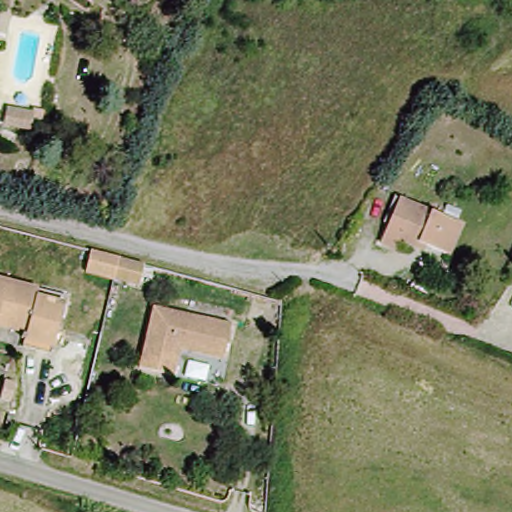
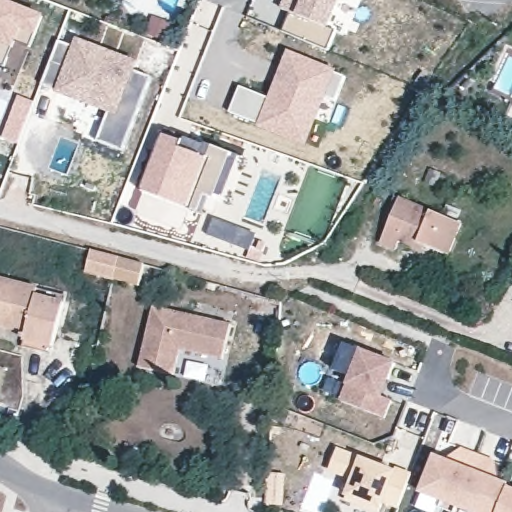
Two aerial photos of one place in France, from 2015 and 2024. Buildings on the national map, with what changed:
new [(0,0),(4,0),(47,17),(39,37),(36,35),(30,48),(17,41),(14,49),(6,67),(0,65),(0,0)]
new [(281,0),(339,0),(329,28),(336,32),(327,50),(282,31),(290,14),(278,7),(281,0)]
new [(59,41),(74,47),(77,39),(139,63),(136,72),(153,79),(124,152),(98,143),(109,113),(56,94),(57,92),(43,86),(59,41)]
new [(268,97),(287,50),(337,70),(336,74),(345,77),(336,100),(327,96),(306,146),(256,126),(228,112),(239,85),(268,97)]
demolished [(29,106),(39,111),(34,121),(25,120),(27,113),(29,106)]
new [(162,132),(184,141),(185,138),(234,154),(216,199),(205,196),(198,213),(139,191),(162,132)]
unchanged [(460,222),(445,252),(421,243),(418,249),(398,242),(394,249),(377,241),(398,197),(460,222)]
new [(213,217),(255,233),(253,239),(249,249),(206,233),(213,217)]
unchanged [(108,277),(85,271),(90,247),(103,251),(114,253),(146,262),(138,285),(108,277)]
unchanged [(37,297),(59,302),(49,348),(25,344),(25,336),(0,332),(0,278),(39,286),(37,297)]
unchanged [(236,329),(227,362),(183,352),(176,378),(141,368),(158,310),(236,329)]
new [(391,395),(384,413),(340,396),(350,372),(333,365),(343,338),(394,358),(388,375),(381,391),(391,395)]
unchanged [(16,408),(14,419),(5,416),(8,406),(16,408)]
new [(335,447),(392,468),(394,466),(410,472),(397,505),(382,499),(377,511),(342,497),(350,477),(327,467),(335,447)]
new [(444,458),(459,447),(475,453),(455,505),(419,491),(432,455),(444,458)]
new [(492,460),(495,479),(507,483),(505,486),(495,512),(473,512),(455,505),(475,453),(492,460)]
new [(505,486),(512,489),(512,512),(495,512),(505,486)]

